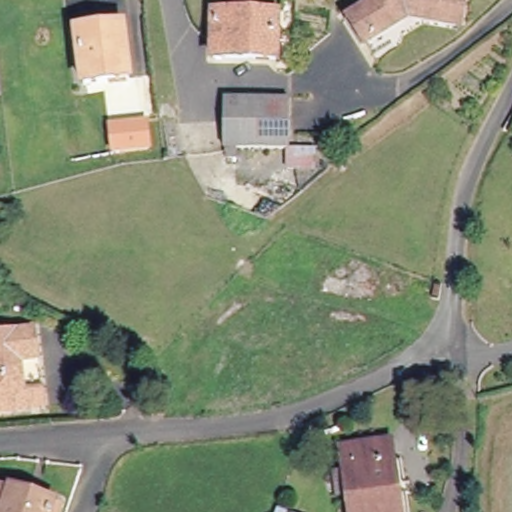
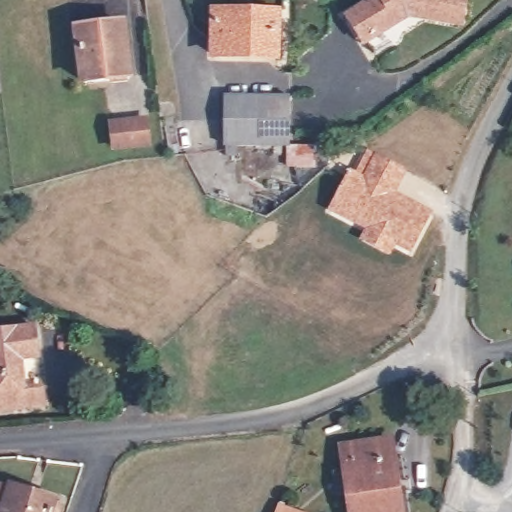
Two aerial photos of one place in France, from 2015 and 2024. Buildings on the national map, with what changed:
unchanged [(452,29),(393,20),(358,40),(345,17),(374,0),(456,0),(452,29)]
unchanged [(276,62),(214,64),(212,20),(274,18),(276,62)]
unchanged [(126,80),(82,87),(74,35),(118,29),(126,80)]
unchanged [(236,163),(225,164),(224,154),(220,154),(218,103),(287,100),(290,151),(236,154),(236,163)]
unchanged [(146,146),(115,150),(113,128),(144,124),(146,146)]
unchanged [(316,168),(291,170),(291,149),(316,148),(316,168)]
new [(349,169),(353,171),(366,148),(406,171),(396,191),(433,209),(410,255),(394,247),(389,257),(357,240),(362,230),(325,210),(349,169)]
unchanged [(30,367),(14,368),(16,398),(33,398),(33,415),(0,417),(0,339),(28,337),(30,367)]
unchanged [(360,512),(357,499),(343,501),(340,469),(352,468),(350,454),(397,446),(408,512),(360,512)]
unchanged [(14,487),(15,484),(60,499),(56,512),(0,512),(0,483),(14,487)]

